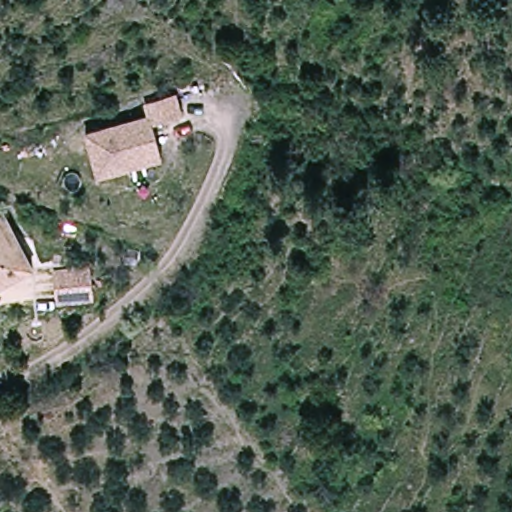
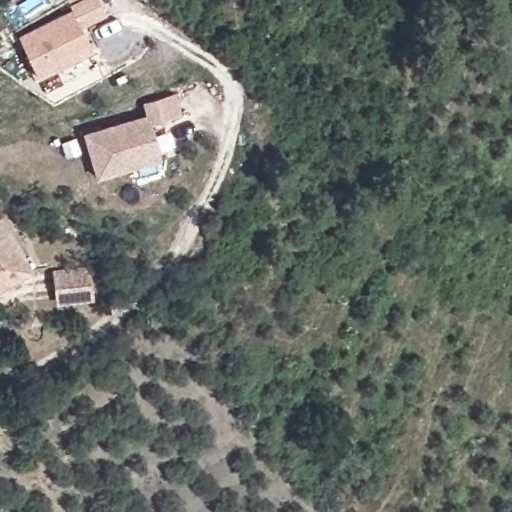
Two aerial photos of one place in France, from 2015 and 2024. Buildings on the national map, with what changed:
new [(72,9),(70,6),(82,0),(99,0),(106,14),(82,28),(91,50),(36,74),(17,35),(72,9)]
unchanged [(177,94),(184,115),(154,125),(164,159),(97,179),(84,134),(148,115),(144,103),(177,94)]
unchanged [(37,283),(0,294),(0,226),(19,219),(37,283)]
unchanged [(95,269),(98,303),(62,308),(60,275),(95,269)]

